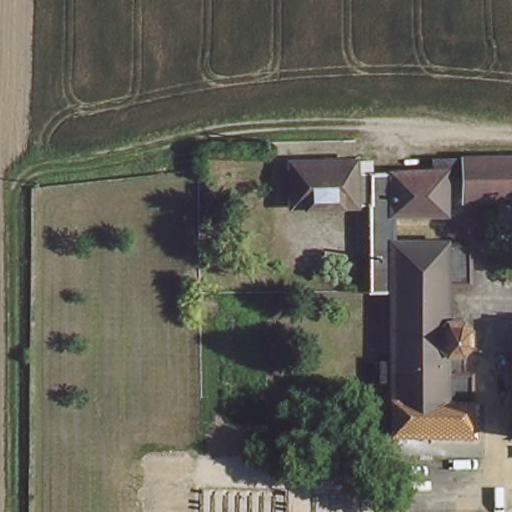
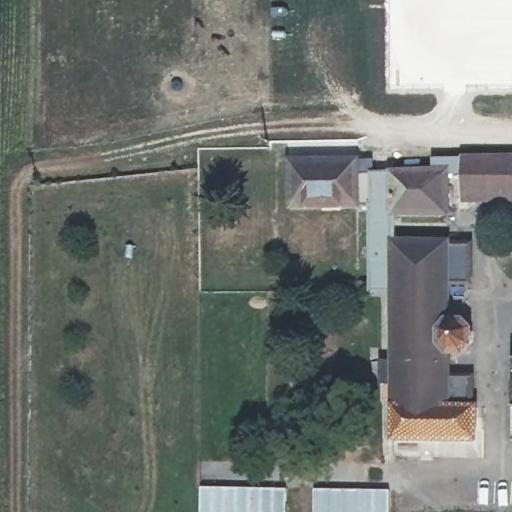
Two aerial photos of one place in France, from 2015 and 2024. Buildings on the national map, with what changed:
unchanged [(454,167),(512,168),(512,206),(468,206),(467,183),(447,182),(448,247),(467,247),(466,285),(447,283),(448,324),(466,325),(465,342),(448,342),(448,372),(472,373),(474,445),(389,440),(390,385),(379,385),(379,362),(389,360),(387,293),(373,292),(369,209),(357,209),(285,207),(286,175),(287,164),(356,166),(356,177),(431,179),(430,167),(454,167)]
new [(200,512),(201,487),(285,489),(285,512),(200,512)]
new [(313,512),(314,489),(388,491),(388,512),(313,512)]

